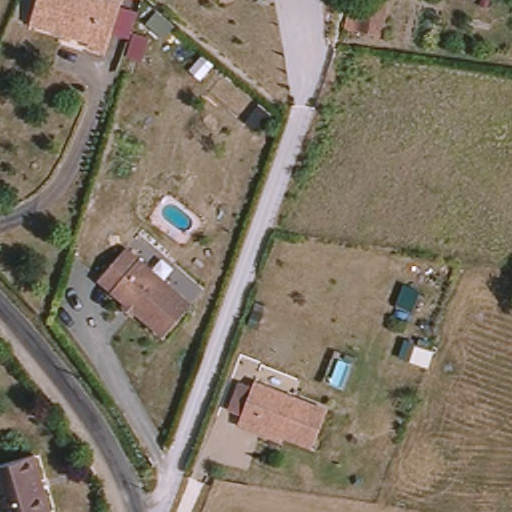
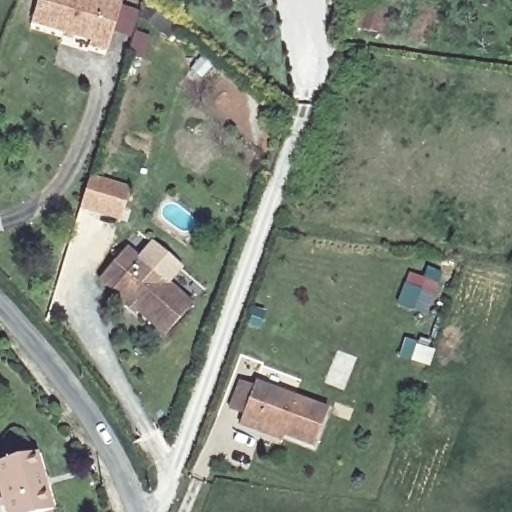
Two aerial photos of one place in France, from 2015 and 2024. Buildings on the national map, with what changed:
unchanged [(44,0),(103,0),(126,7),(112,54),(94,48),(96,42),(37,24),(44,0)]
unchanged [(349,24),(354,0),(373,0),(391,5),(385,35),(349,24)]
new [(93,177),(130,188),(120,219),(84,207),(93,177)]
unchanged [(124,304),(127,300),(99,276),(126,245),(190,302),(164,333),(135,308),(132,312),(124,304)]
unchanged [(257,433),(242,427),(245,418),(232,413),(243,385),(257,391),(259,386),(330,415),(316,451),(259,428),(257,433)]
unchanged [(7,512),(0,489),(0,466),(36,455),(51,512),(7,512)]

